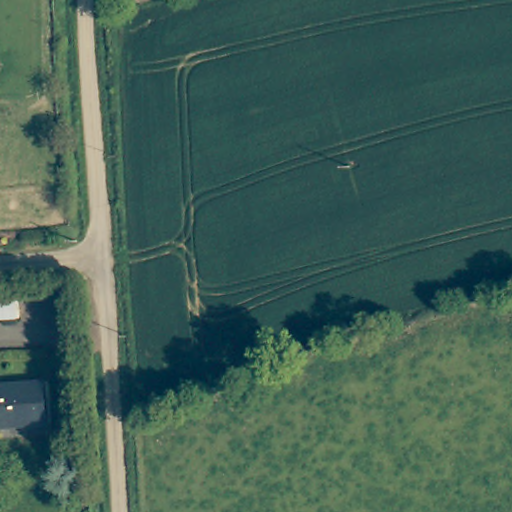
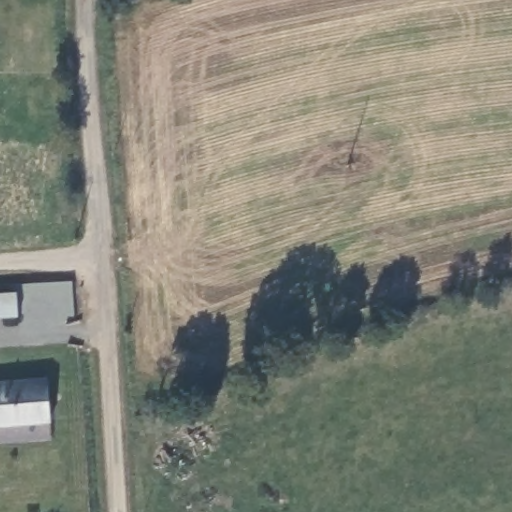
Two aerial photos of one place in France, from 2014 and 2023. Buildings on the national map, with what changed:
unchanged [(16,298),(17,321),(0,322),(0,299),(16,298)]
unchanged [(48,423),(0,431),(0,391),(42,385),(48,423)]

